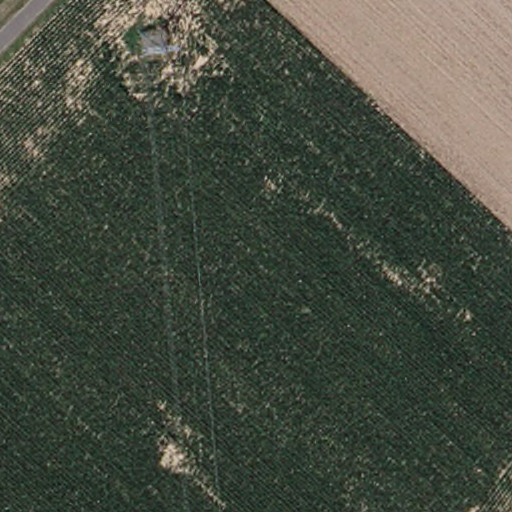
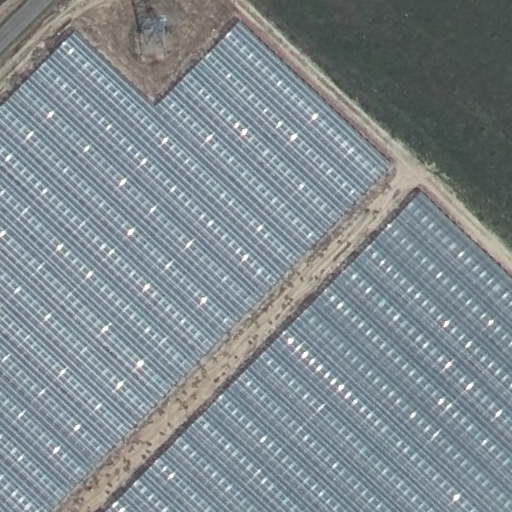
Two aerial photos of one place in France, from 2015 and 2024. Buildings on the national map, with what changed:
new [(72,33),(152,107),(238,23),(388,167),(49,512),(0,512),(0,107),(72,33)]
new [(512,281),(512,512),(105,512),(420,194),(512,281)]

